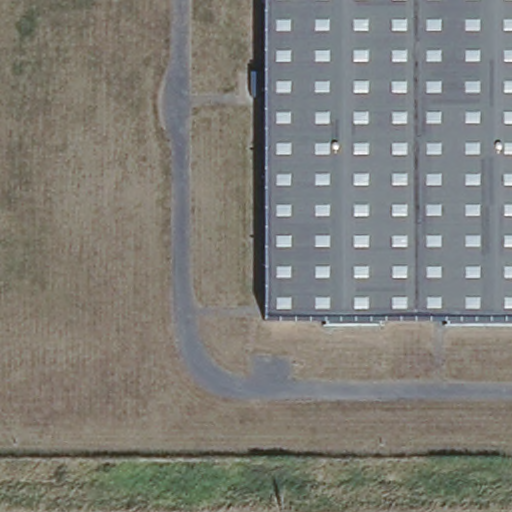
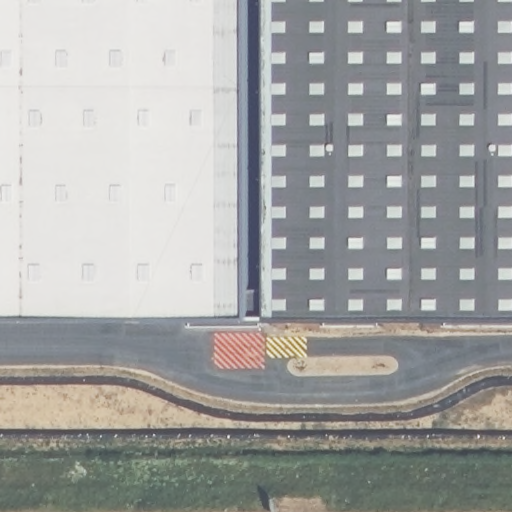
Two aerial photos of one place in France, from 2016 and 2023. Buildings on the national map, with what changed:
new [(0,318),(0,0),(249,0),(249,317),(0,318)]
unchanged [(265,0),(512,0),(512,315),(267,313),(265,0)]

